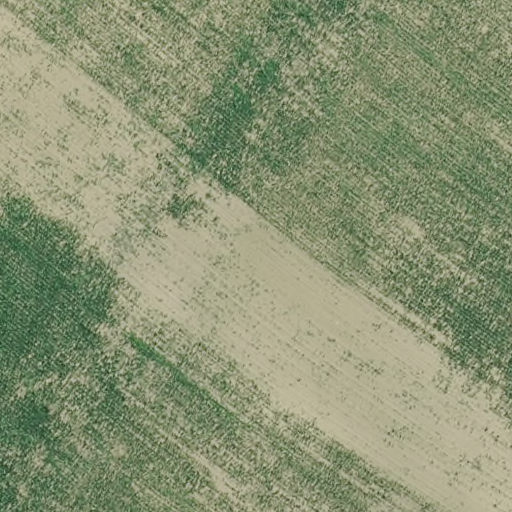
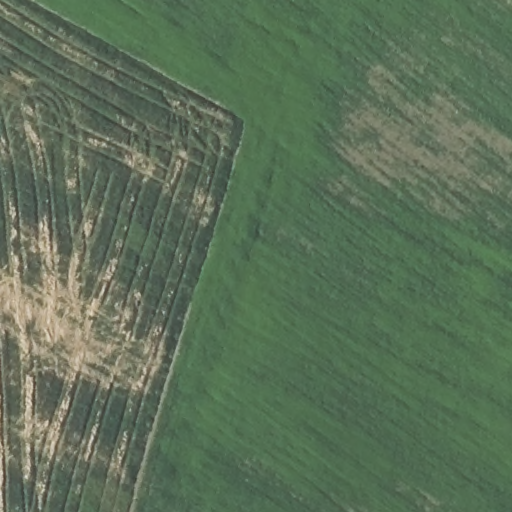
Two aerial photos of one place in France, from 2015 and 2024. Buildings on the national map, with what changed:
[]

